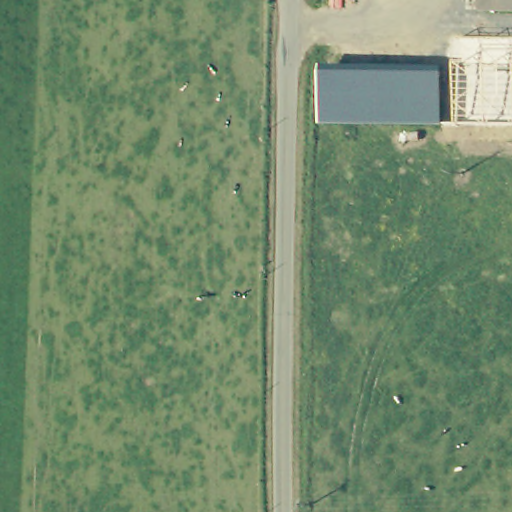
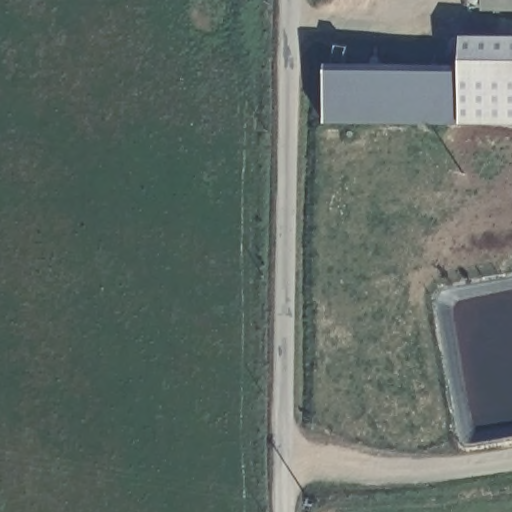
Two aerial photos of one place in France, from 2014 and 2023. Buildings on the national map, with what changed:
new [(512,0),(512,13),(481,13),(482,0),(512,0)]
demolished [(497,0),(512,0),(512,5),(496,4),(497,0)]
new [(450,71),(461,71),(460,36),(512,37),(512,124),(449,123),(450,71)]
unchanged [(450,71),(449,123),(329,119),(330,68),(450,71)]

